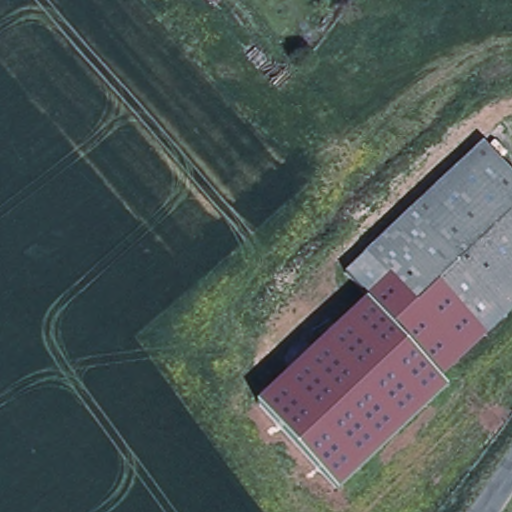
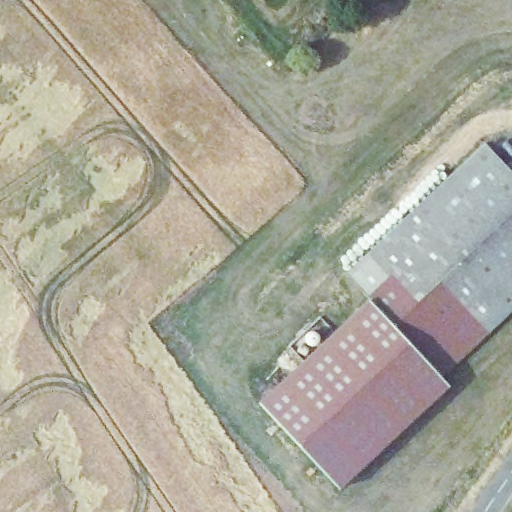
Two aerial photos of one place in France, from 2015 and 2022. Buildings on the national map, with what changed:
unchanged [(484,145),(512,175),(512,310),(507,315),(494,327),(437,380),(390,329),(342,278),(406,219),(412,212),(484,145)]
unchanged [(437,380),(445,389),(335,491),(279,431),(390,329),(437,380)]

